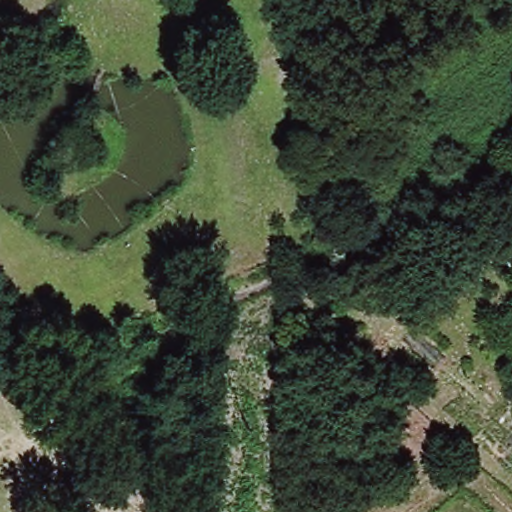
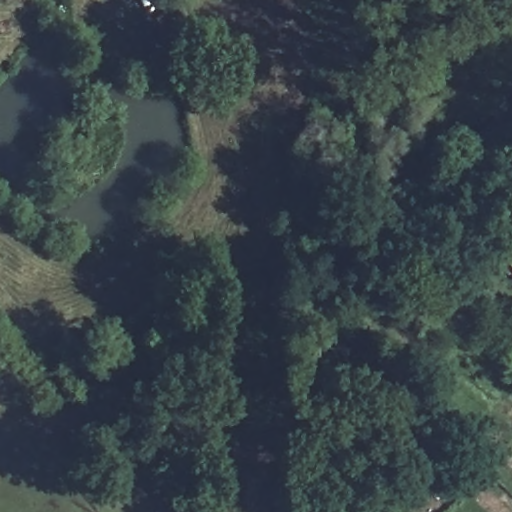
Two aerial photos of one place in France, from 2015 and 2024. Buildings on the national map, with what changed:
[]

